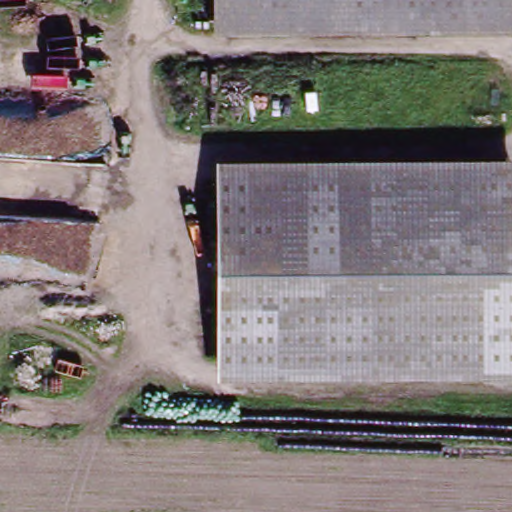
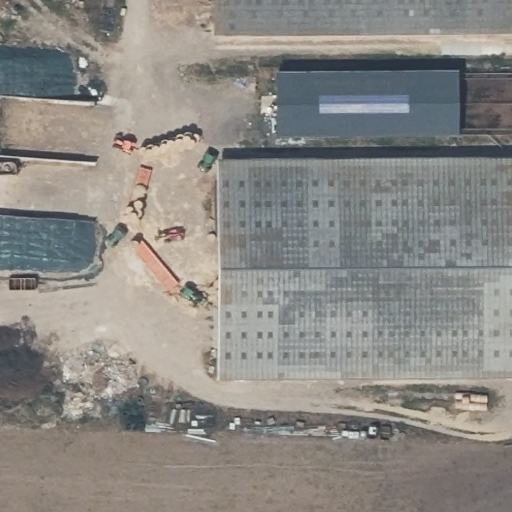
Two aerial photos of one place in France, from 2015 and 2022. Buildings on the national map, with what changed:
unchanged [(216,0),(512,0),(512,35),(216,40),(216,0)]
new [(457,72),(460,135),(276,138),(275,72),(457,72)]
unchanged [(512,162),(512,382),(222,384),(220,163),(512,162)]

